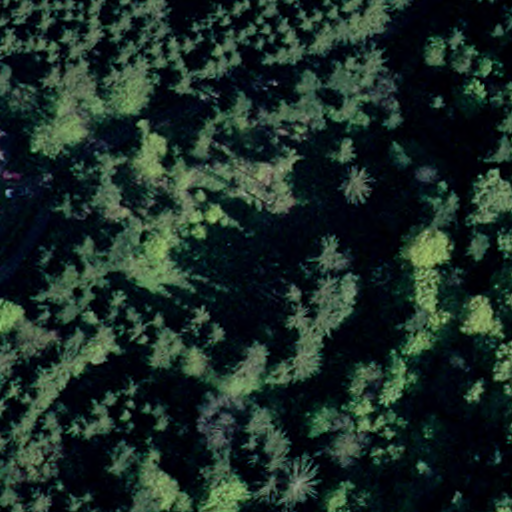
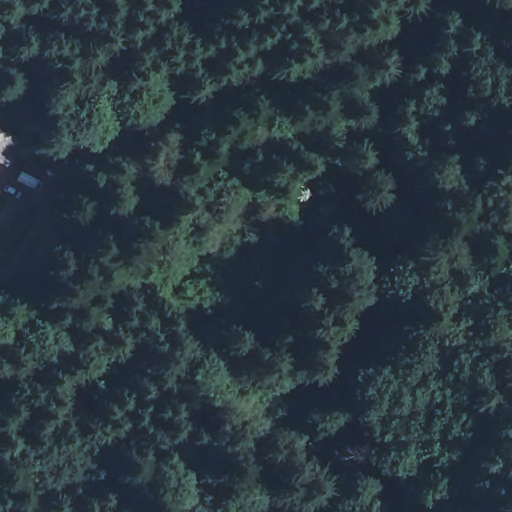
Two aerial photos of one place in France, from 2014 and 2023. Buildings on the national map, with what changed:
unchanged [(12,160),(0,154),(0,129),(21,139),(12,160)]

